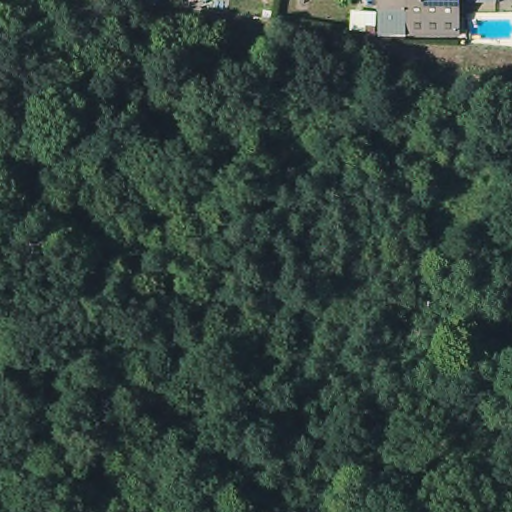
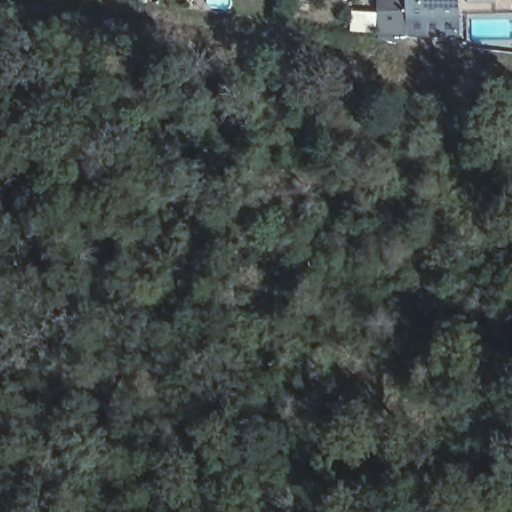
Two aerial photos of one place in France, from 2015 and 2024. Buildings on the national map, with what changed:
unchanged [(463,1),(464,41),(381,41),(381,36),(352,37),(352,14),(366,12),(366,0),(499,0),(499,4),(463,1)]

